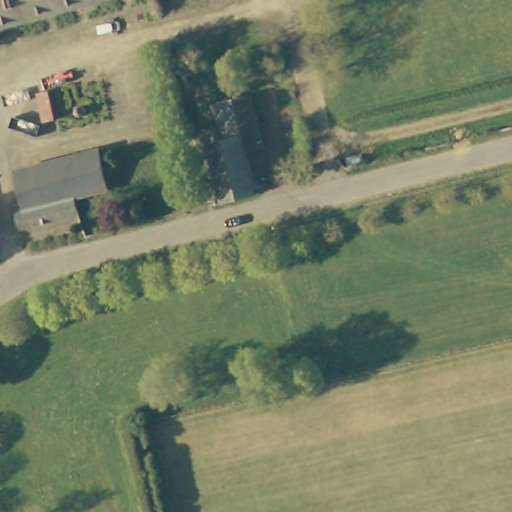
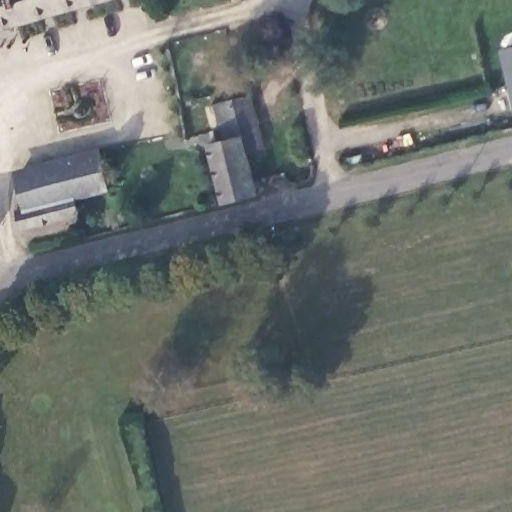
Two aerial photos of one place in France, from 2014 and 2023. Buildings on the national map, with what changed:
unchanged [(67,19),(0,40),(0,0),(124,0),(67,19)]
new [(512,46),(512,100),(499,50),(512,46)]
unchanged [(233,97),(265,90),(276,140),(245,149),(233,97)]
unchanged [(224,197),(211,140),(222,137),(215,102),(233,97),(245,149),(253,189),(224,197)]
unchanged [(102,188),(69,197),(28,205),(21,165),(95,150),(102,188)]
unchanged [(20,207),(28,205),(69,197),(72,216),(29,227),(24,223),(20,207)]

